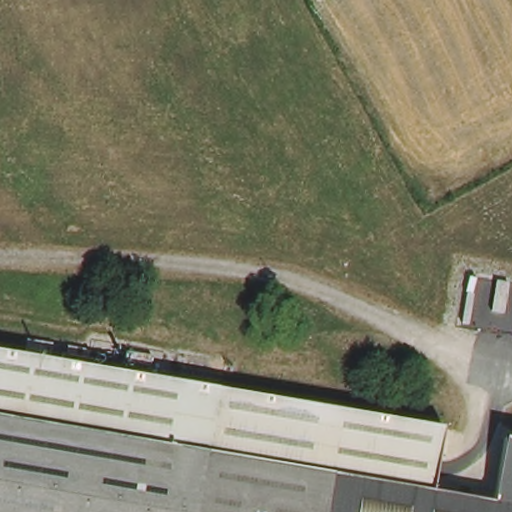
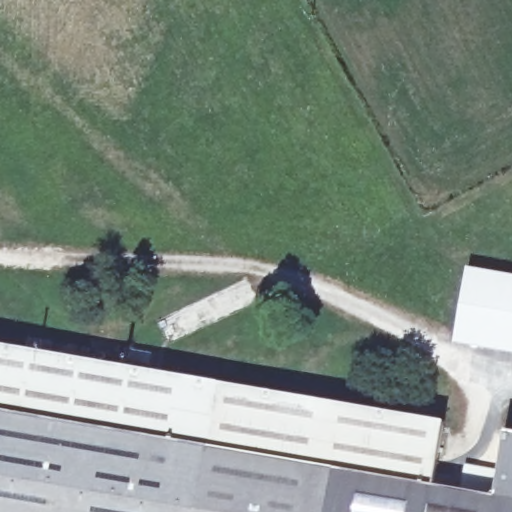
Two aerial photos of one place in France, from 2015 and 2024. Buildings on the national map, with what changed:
new [(470,268),(512,275),(512,341),(459,332),(470,268)]
unchanged [(367,478),(387,512),(0,512),(0,347),(319,401),(367,478)]
unchanged [(442,421),(430,484),(430,489),(367,478),(319,401),(442,421)]
unchanged [(502,432),(512,434),(512,471),(499,450),(502,432)]
unchanged [(499,450),(512,471),(512,502),(493,512),(387,512),(367,478),(430,489),(430,484),(490,495),(499,450)]
unchanged [(493,512),(512,502),(512,512),(493,512)]

